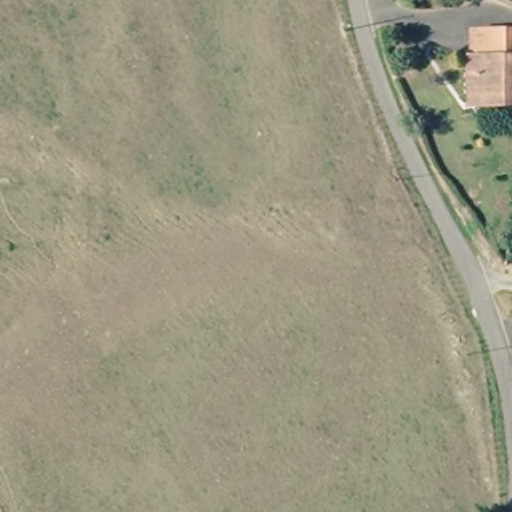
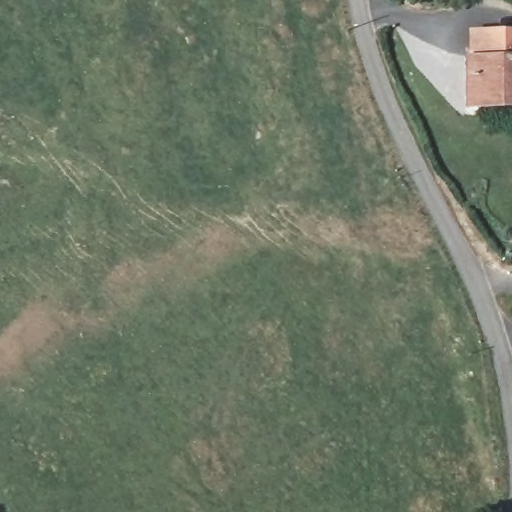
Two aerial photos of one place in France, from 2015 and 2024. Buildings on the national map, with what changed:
unchanged [(476,83),(472,28),(512,28),(512,106),(478,106),(476,83)]

